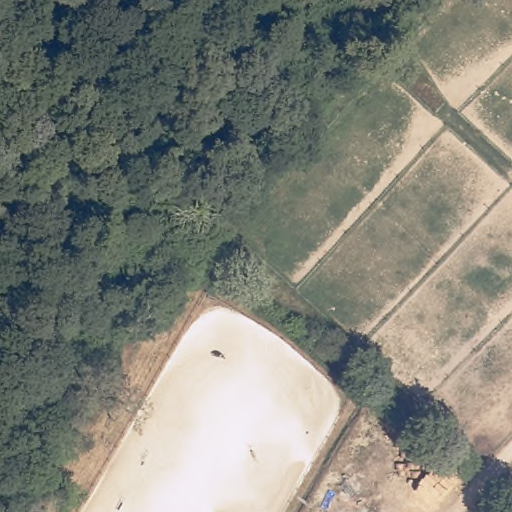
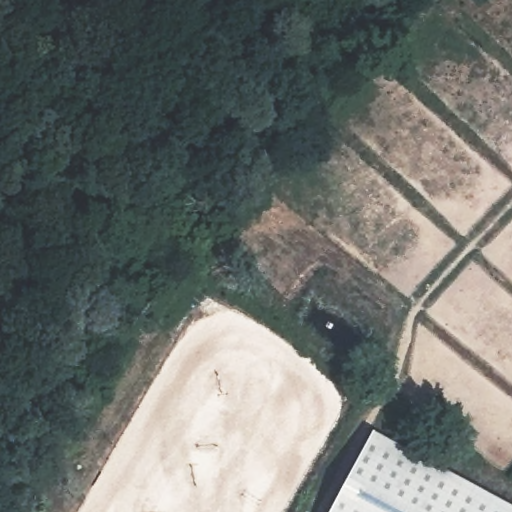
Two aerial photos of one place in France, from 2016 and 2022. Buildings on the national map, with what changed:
new [(512,512),(328,512),(372,432),(512,507),(512,512)]

